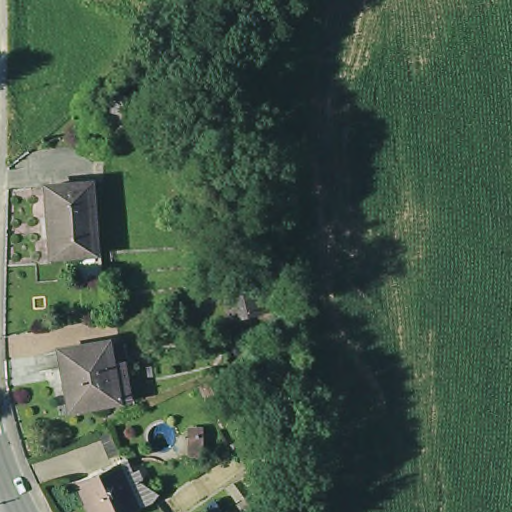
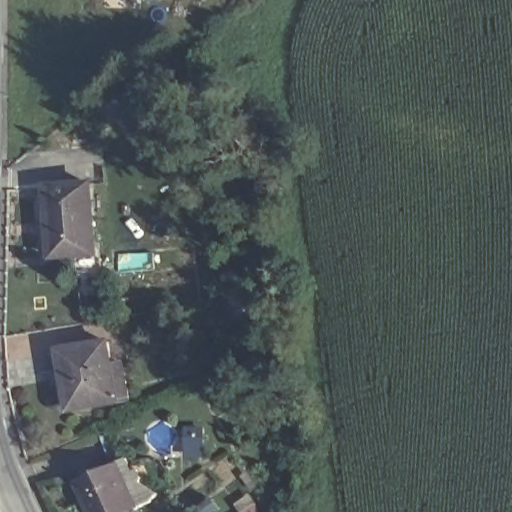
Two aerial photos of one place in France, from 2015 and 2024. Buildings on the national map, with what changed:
unchanged [(142,92),(143,111),(113,112),(112,93),(142,92)]
unchanged [(44,195),(85,192),(89,257),(47,260),(44,195)]
unchanged [(229,296),(251,292),(265,290),(267,304),(257,306),(254,307),(254,312),(233,316),(229,296)]
unchanged [(112,403),(64,410),(56,350),(103,343),(106,366),(117,365),(119,384),(122,402),(112,403)]
unchanged [(77,484),(119,465),(124,459),(128,457),(135,472),(140,469),(145,478),(144,484),(161,496),(158,502),(140,510),(135,512),(90,512),(77,484)]

